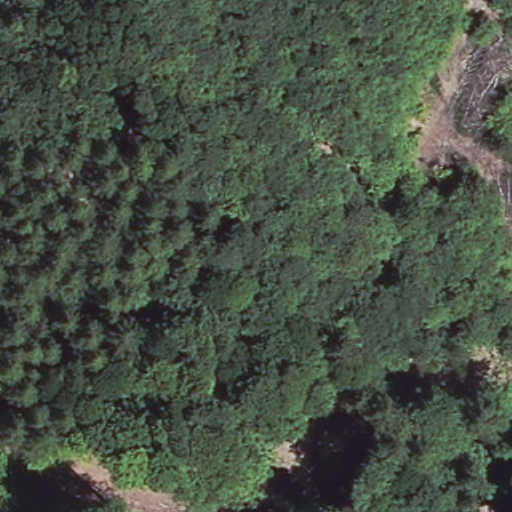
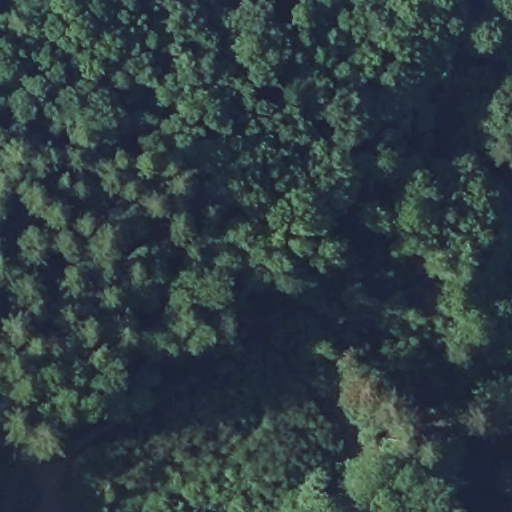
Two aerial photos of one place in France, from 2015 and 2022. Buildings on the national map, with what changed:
unchanged [(9,506),(12,512),(0,512),(9,506)]

